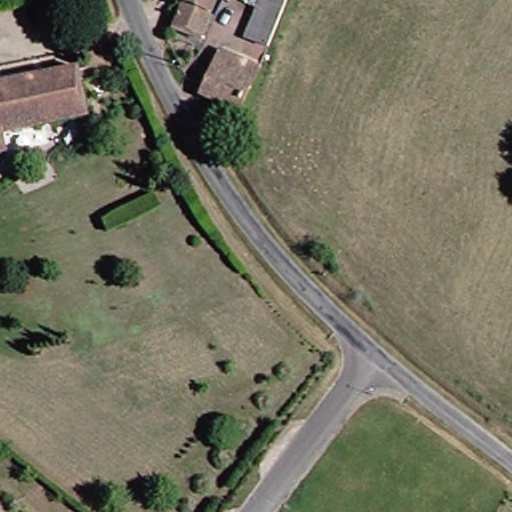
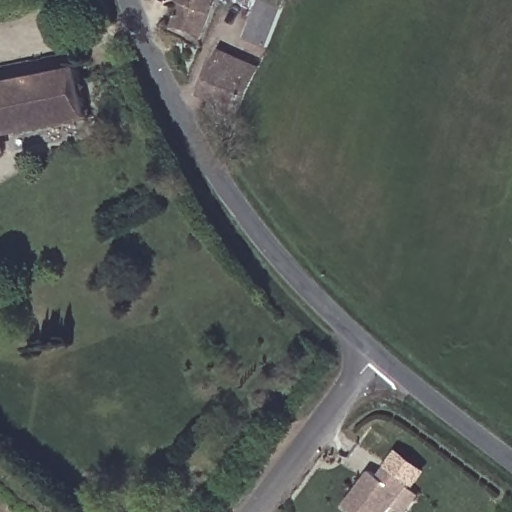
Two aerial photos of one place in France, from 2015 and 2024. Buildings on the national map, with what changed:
unchanged [(209,0),(192,42),(164,32),(177,0),(209,0)]
unchanged [(249,0),(282,0),(263,49),(235,39),(249,0)]
unchanged [(233,116),(193,98),(207,62),(211,52),(232,60),(250,68),(233,116)]
unchanged [(79,120),(0,136),(0,86),(73,72),(79,120)]
new [(390,512),(351,512),(343,507),(371,471),(378,476),(386,466),(411,485),(390,512)]

